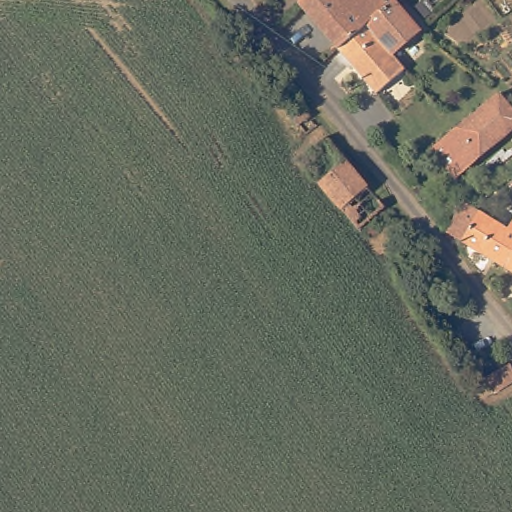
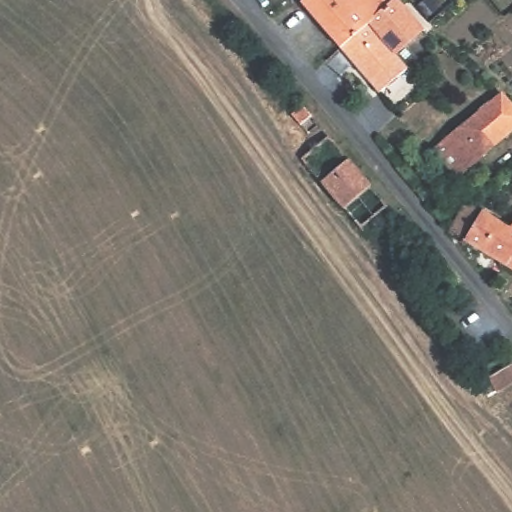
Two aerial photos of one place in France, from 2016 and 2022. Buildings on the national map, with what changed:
unchanged [(298,0),(388,0),(392,4),(364,24),(337,46),(297,1),(298,0)]
unchanged [(364,24),(392,4),(397,0),(398,0),(425,28),(393,55),(400,63),(373,86),(337,46),(364,24)]
unchanged [(469,167),(444,141),(512,83),(512,130),(469,167)]
unchanged [(309,117),(299,126),(289,114),(299,106),(309,117)]
unchanged [(298,144),(325,124),(397,212),(384,223),(375,213),(363,223),(298,144)]
unchanged [(512,224),(512,255),(505,265),(463,239),(454,235),(449,227),(467,203),(482,211),(510,226),(512,224)]
unchanged [(512,255),(512,269),(505,265),(512,255)]
unchanged [(487,363),(506,352),(512,363),(512,380),(501,387),(488,396),(480,384),(493,377),(487,363)]

